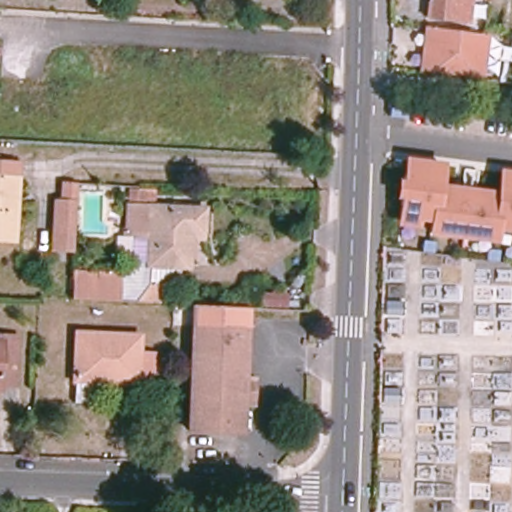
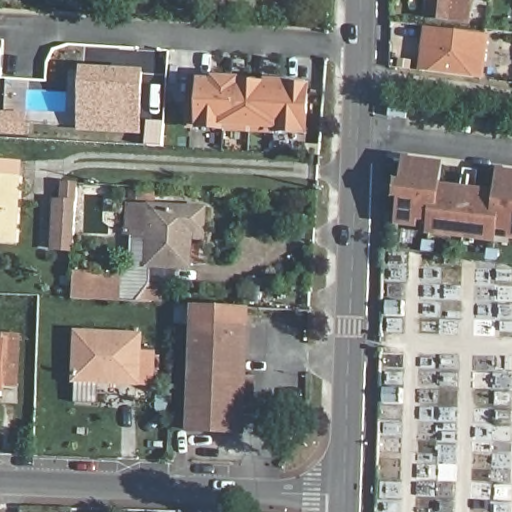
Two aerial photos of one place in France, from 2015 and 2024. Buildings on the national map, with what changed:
unchanged [(465,22),(448,21),(425,18),(427,0),(468,0),(465,22)]
unchanged [(447,29),(488,35),(483,78),(420,67),(425,18),(448,21),(447,29)]
new [(80,131),(82,66),(145,69),(141,134),(80,131)]
new [(188,129),(190,76),(312,81),(310,135),(188,129)]
unchanged [(512,169),(512,240),(496,238),(496,245),(426,236),(426,229),(396,225),(403,157),(445,162),(441,184),(494,191),(498,167),(512,169)]
unchanged [(15,244),(0,242),(0,160),(21,161),(15,244)]
unchanged [(50,249),(52,201),(59,202),(59,184),(73,184),(70,250),(50,249)]
unchanged [(70,272),(117,274),(127,263),(129,237),(120,236),(122,207),(196,211),(195,231),(185,231),(185,238),(184,266),(147,264),(145,302),(69,298),(70,272)]
unchanged [(194,325),(195,303),(247,306),(247,327),(194,325)]
unchanged [(245,383),(244,399),(242,433),(189,431),(194,325),(247,327),(245,383)]
unchanged [(0,380),(0,332),(15,332),(12,381),(0,380)]
unchanged [(94,382),(70,382),(72,332),(137,335),(136,352),(151,353),(150,386),(135,385),(94,382)]

